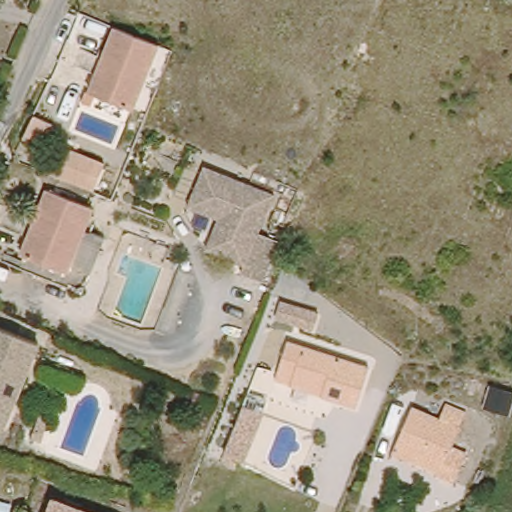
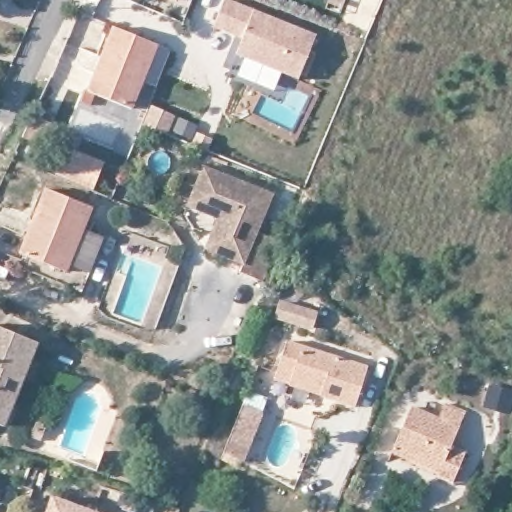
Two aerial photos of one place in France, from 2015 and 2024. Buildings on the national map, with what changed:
new [(169,0),(179,0),(178,4),(169,0)]
new [(300,79),(238,54),(243,40),(214,28),(224,0),(233,0),(316,35),(300,79)]
unchanged [(117,24),(122,25),(161,40),(136,108),(92,90),(117,24)]
unchanged [(35,159),(16,150),(27,125),(46,134),(35,159)]
unchanged [(55,171),(66,143),(108,161),(96,189),(55,171)]
unchanged [(265,234),(282,241),(270,275),(214,249),(224,216),(193,204),(206,164),(282,193),(265,234)]
unchanged [(50,193),(96,210),(71,276),(27,258),(50,193)]
unchanged [(319,329),(278,317),(283,299),(323,310),(319,329)]
unchanged [(42,345),(11,430),(0,426),(0,329),(42,345)]
unchanged [(277,384),(288,345),(323,356),(371,369),(357,409),(325,398),(293,389),(277,384)]
unchanged [(400,440),(415,402),(461,419),(450,446),(464,452),(453,478),(439,473),(440,465),(396,446),(400,440)]
unchanged [(251,463),(227,453),(245,405),(269,412),(251,463)]
unchanged [(50,497),(93,512),(45,512),(50,497)]

